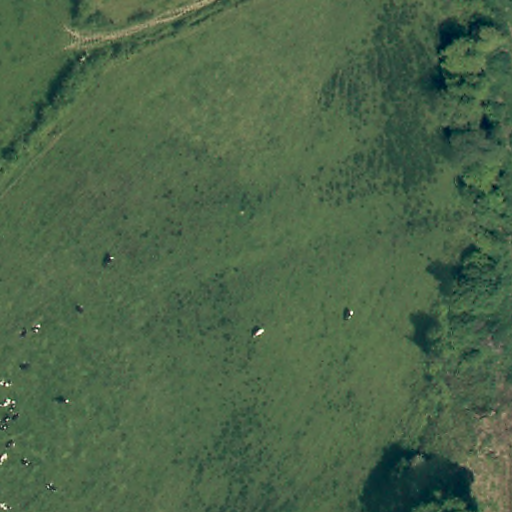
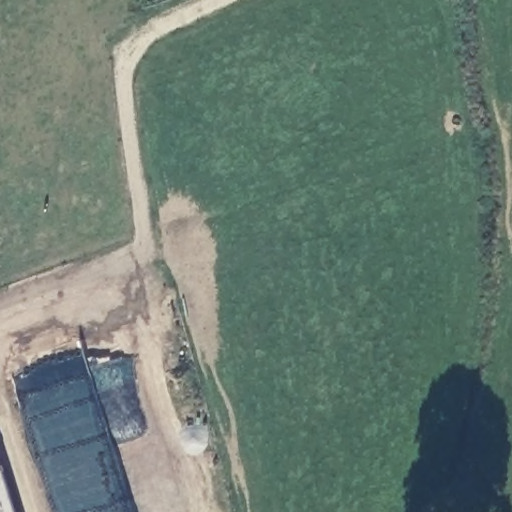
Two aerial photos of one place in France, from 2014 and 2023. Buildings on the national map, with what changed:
new [(0,461),(16,512),(0,512),(0,461)]

